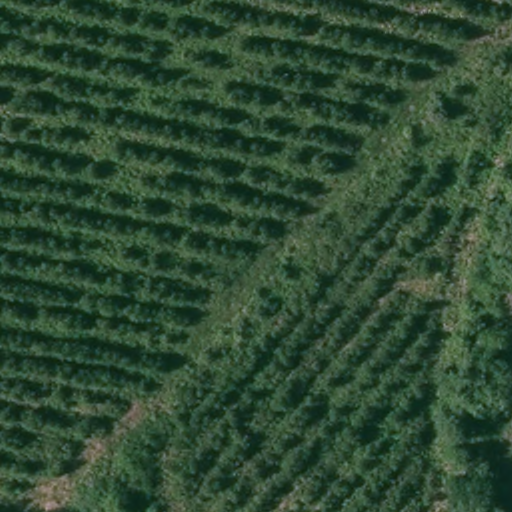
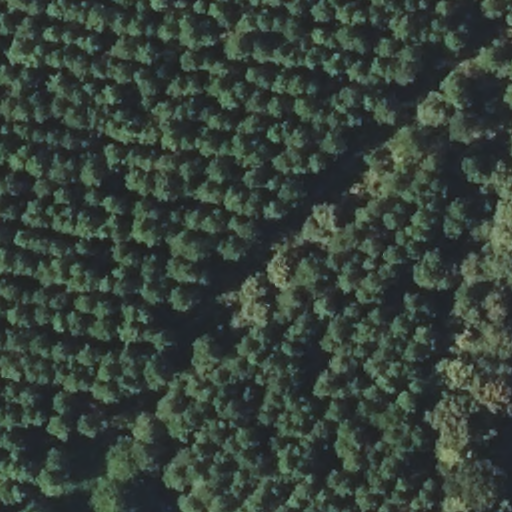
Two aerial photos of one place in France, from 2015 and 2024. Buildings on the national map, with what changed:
[]

